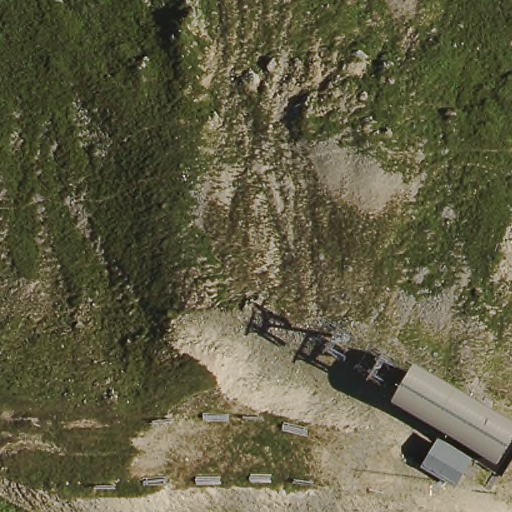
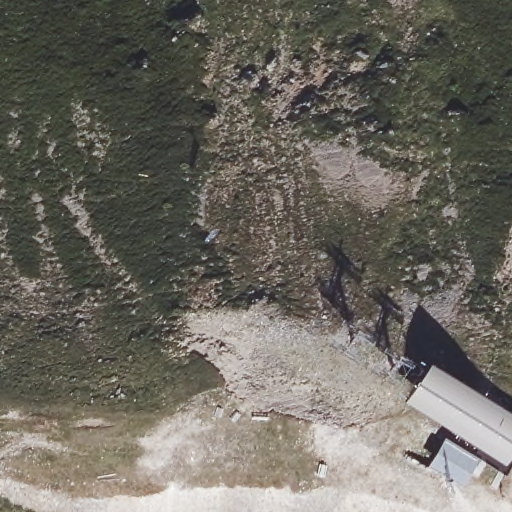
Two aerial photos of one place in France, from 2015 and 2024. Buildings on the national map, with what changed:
unchanged [(512,440),(501,459),(400,397),(425,354),(512,410),(512,440)]
unchanged [(439,435),(472,455),(457,481),(425,462),(432,445),(439,435)]

